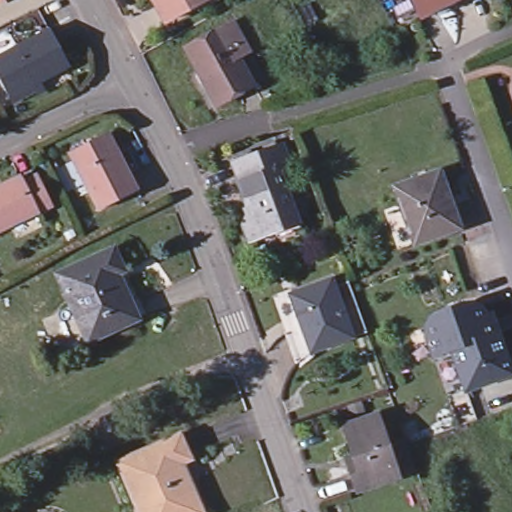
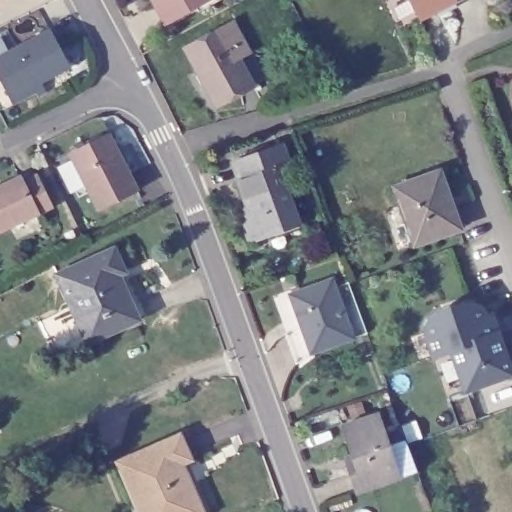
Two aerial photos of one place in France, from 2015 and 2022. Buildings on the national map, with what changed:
unchanged [(152,0),(197,0),(162,19),(152,0)]
unchanged [(408,0),(449,0),(416,16),(408,0)]
unchanged [(258,76),(248,82),(250,84),(211,105),(181,52),(178,49),(216,27),(219,32),(234,57),(244,52),(258,76)]
unchanged [(65,68),(2,99),(0,94),(0,52),(45,30),(65,68)]
unchanged [(137,190),(98,209),(70,151),(108,132),(137,190)]
unchanged [(236,179),(230,161),(278,144),(285,161),(275,165),(295,220),(247,238),(240,216),(248,213),(236,179)]
unchanged [(435,170),(455,225),(411,241),(391,185),(435,170)]
unchanged [(13,183),(27,176),(41,205),(27,211),(0,225),(0,183),(10,178),(13,183)]
unchanged [(116,267),(119,266),(131,296),(128,298),(135,315),(86,337),(72,302),(66,305),(52,271),(108,248),(116,267)]
unchanged [(279,297),(319,283),(321,289),(335,284),(336,285),(355,335),(339,341),(338,340),(300,355),(279,297)]
unchanged [(425,325),(428,317),(436,311),(460,303),(470,302),(478,306),(484,314),(488,312),(495,330),(509,371),(463,387),(450,347),(432,353),(425,336),(425,325)]
unchanged [(345,459),(335,428),(370,416),(380,447),(378,447),(390,481),(349,495),(340,470),(338,461),(345,459)]
unchanged [(163,443),(173,439),(182,460),(172,465),(193,512),(145,512),(140,501),(130,505),(113,465),(163,443)]

